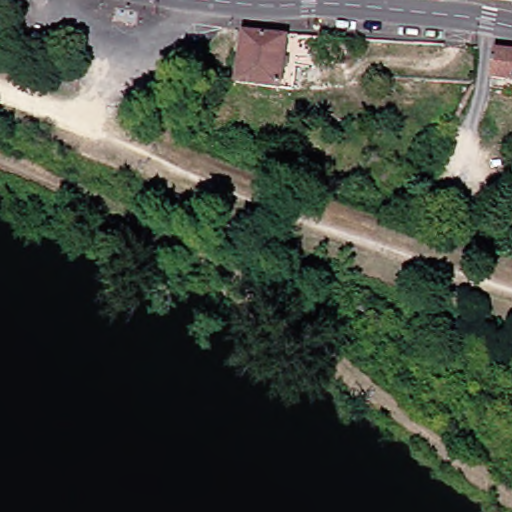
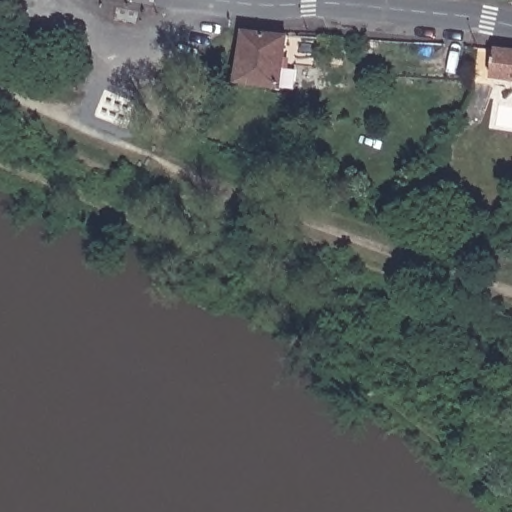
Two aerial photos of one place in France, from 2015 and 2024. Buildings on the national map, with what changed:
unchanged [(247,29),(291,33),(286,85),(241,80),(247,29)]
unchanged [(498,46),(512,48),(512,78),(495,75),(498,46)]
unchanged [(486,84),(482,103),(472,122),(461,121),(458,120),(477,82),(480,82),(486,84)]

